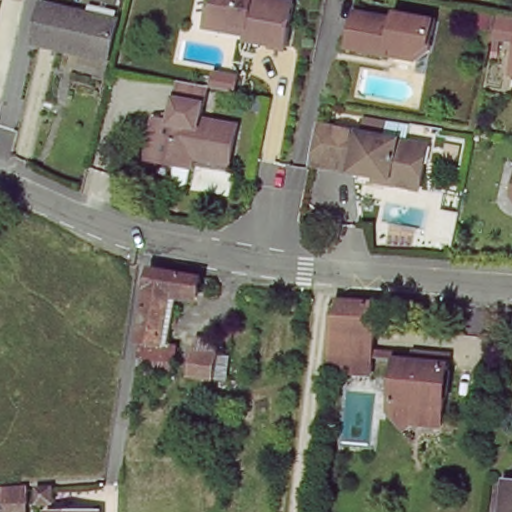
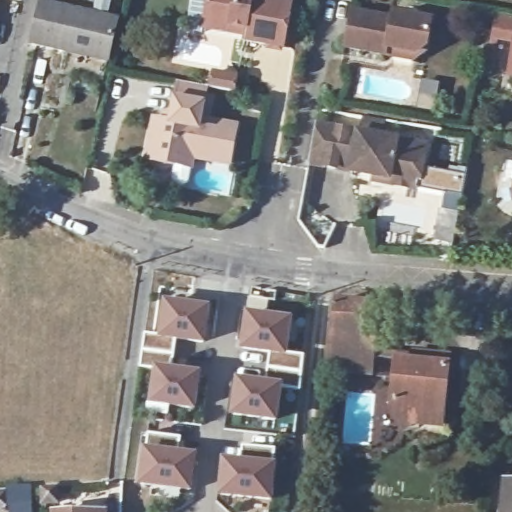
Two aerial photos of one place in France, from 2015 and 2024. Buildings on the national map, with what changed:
unchanged [(19,0),(23,0),(23,1),(19,0)]
unchanged [(213,0),(257,0),(257,1),(296,9),(288,53),(248,45),(249,40),(206,31),(209,22),(213,0)]
unchanged [(67,50),(33,42),(42,2),(116,19),(108,52),(106,60),(67,50)]
unchanged [(348,47),(355,12),(394,20),(395,14),(435,22),(430,51),(418,61),(399,57),(388,55),(348,47)]
unchanged [(497,42),(501,22),(512,25),(512,45),(497,42)]
unchanged [(187,192),(181,191),(177,185),(179,169),(154,165),(151,160),(155,142),(158,124),(168,125),(169,120),(177,121),(183,86),(211,91),(205,124),(241,130),(234,169),(197,162),(192,188),(187,192)]
unchanged [(375,182),(326,171),(332,133),(418,150),(428,152),(425,167),(420,195),(389,190),(375,187),(375,182)]
unchanged [(432,236),(437,213),(454,217),(450,239),(432,236)]
demolished [(148,264),(198,273),(194,297),(174,293),(167,340),(172,340),(169,358),(135,352),(148,264)]
unchanged [(328,368),(330,351),(331,342),(336,298),(378,300),(372,355),(370,371),(328,368)]
new [(153,403),(157,369),(149,368),(153,335),(164,336),(168,303),(208,309),(204,342),(175,339),(171,371),(199,375),(195,409),(153,403)]
new [(234,414),(238,381),(265,384),(270,350),(244,347),(248,314),(288,319),(284,352),(303,355),(299,390),(278,387),(275,420),(234,414)]
demolished [(219,354),(216,379),(193,376),(197,352),(219,354)]
unchanged [(406,432),(391,417),(394,402),(397,365),(413,367),(414,356),(434,358),(448,359),(444,406),(443,413),(441,429),(413,427),(406,432)]
new [(189,490),(142,484),(149,434),(180,439),(178,454),(195,456),(189,490)]
new [(270,500),(222,495),(224,461),(242,463),(243,446),(275,449),(270,500)]
unchanged [(505,481),(512,482),(512,512),(503,512),(505,481)]
unchanged [(41,499),(41,484),(56,484),(56,498),(41,499)]
unchanged [(5,506),(0,506),(0,493),(4,492),(5,506)]
unchanged [(53,508),(103,508),(103,512),(53,512),(53,508)]

